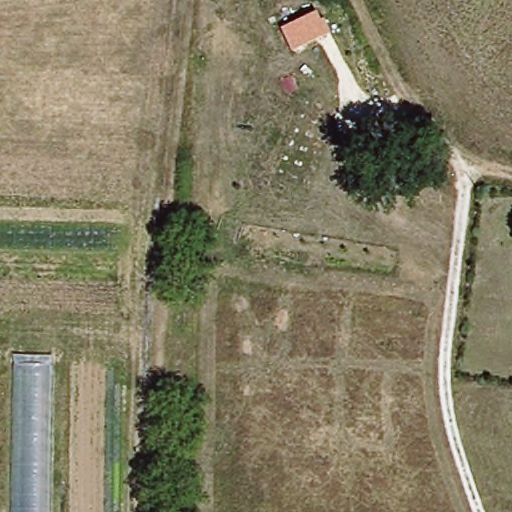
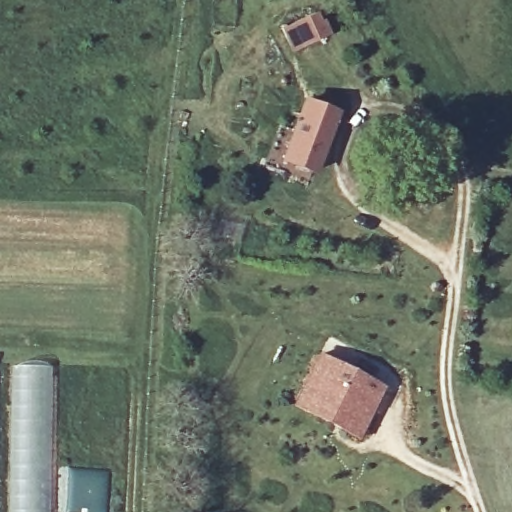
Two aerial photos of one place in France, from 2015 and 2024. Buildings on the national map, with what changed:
unchanged [(317,13),(327,34),(292,53),(282,30),(317,13)]
new [(315,177),(277,161),(302,97),(340,110),(315,177)]
new [(387,386),(357,441),(290,405),(320,351),(387,386)]
unchanged [(52,366),(50,512),(11,512),(14,366),(52,366)]

